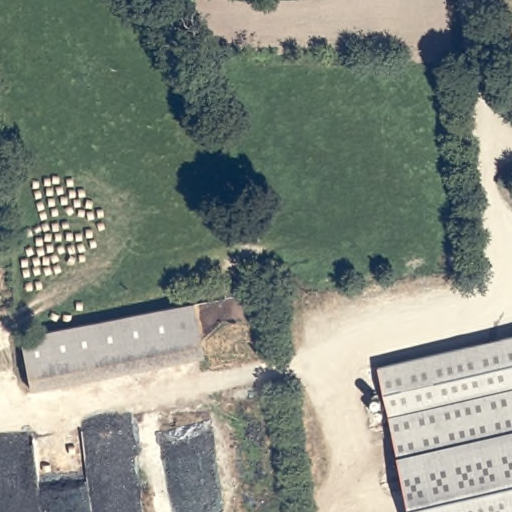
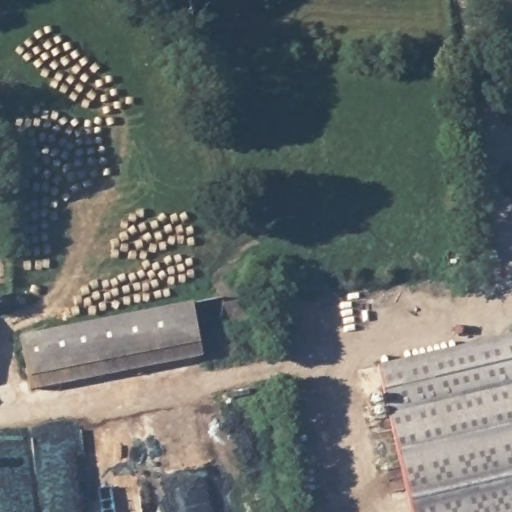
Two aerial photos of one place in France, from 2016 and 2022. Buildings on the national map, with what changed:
unchanged [(196,304),(206,361),(33,396),(22,339),(196,304)]
unchanged [(512,340),(512,512),(414,512),(381,372),(512,340)]

